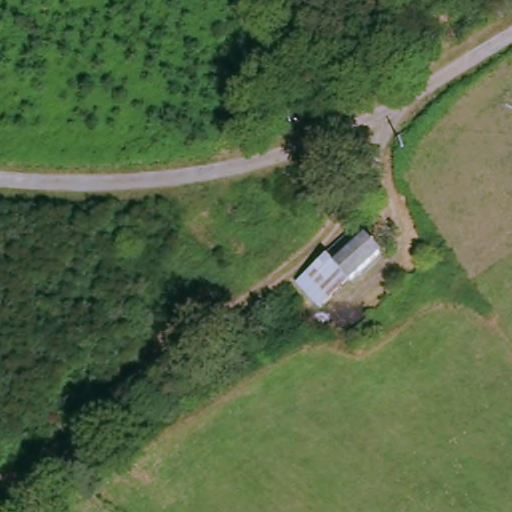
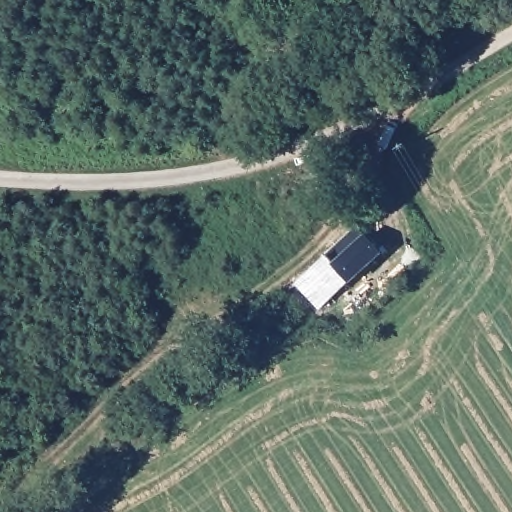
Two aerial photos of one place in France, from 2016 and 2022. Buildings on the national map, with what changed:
unchanged [(384,258),(322,312),(300,287),(362,231),(384,258)]

